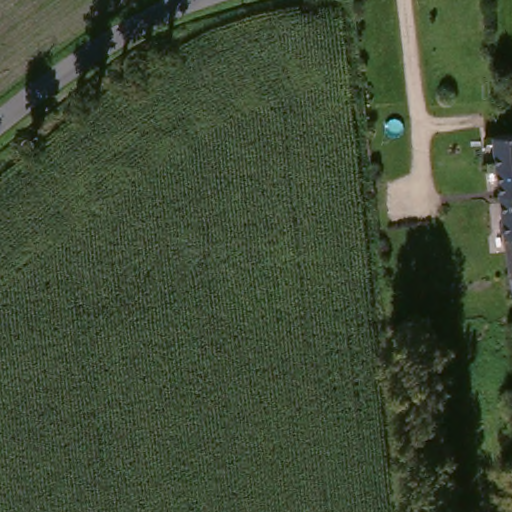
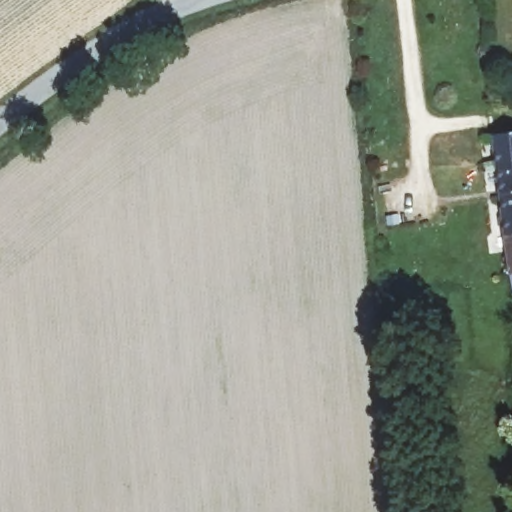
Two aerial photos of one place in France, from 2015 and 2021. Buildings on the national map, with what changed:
unchanged [(497,135),(512,133),(512,190),(502,192),(497,135)]
unchanged [(502,192),(512,190),(512,296),(502,192)]

